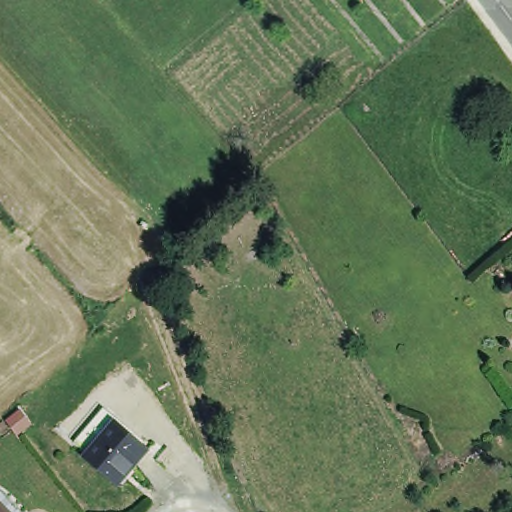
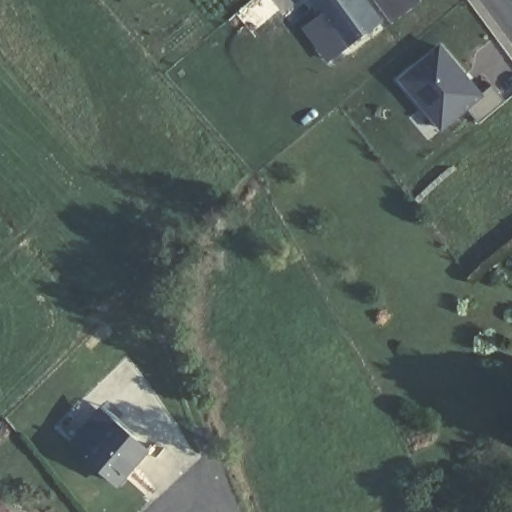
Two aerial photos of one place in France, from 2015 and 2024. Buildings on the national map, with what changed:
new [(345,47),(311,0),(364,0),(380,22),(345,47)]
new [(479,97),(491,89),(503,105),(478,124),(466,111),(440,132),(396,81),(436,47),(479,97)]
unchanged [(85,451),(112,415),(150,451),(121,486),(85,451)]
unchanged [(0,498),(12,512),(0,512),(0,498)]

